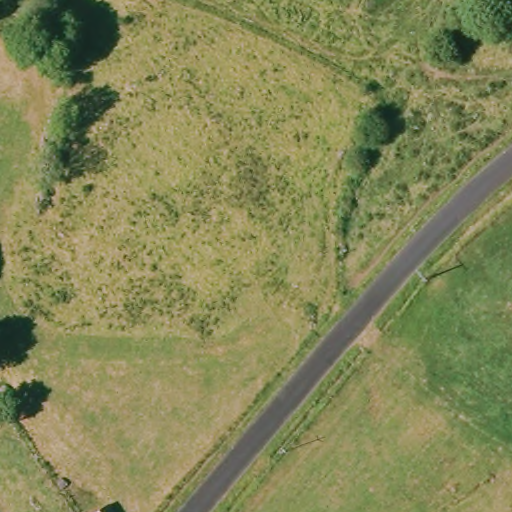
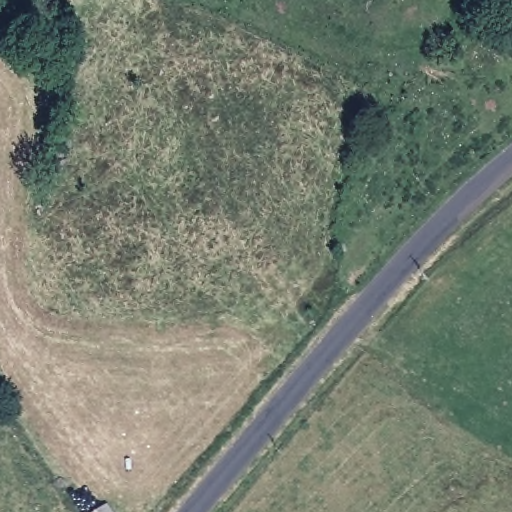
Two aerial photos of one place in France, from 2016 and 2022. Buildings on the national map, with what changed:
unchanged [(109,511),(110,512),(108,512),(109,511)]

